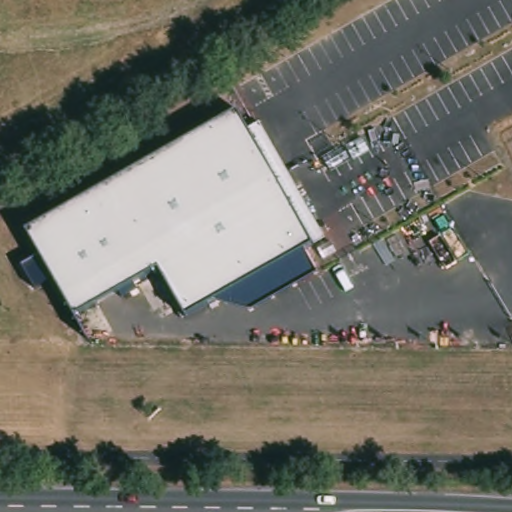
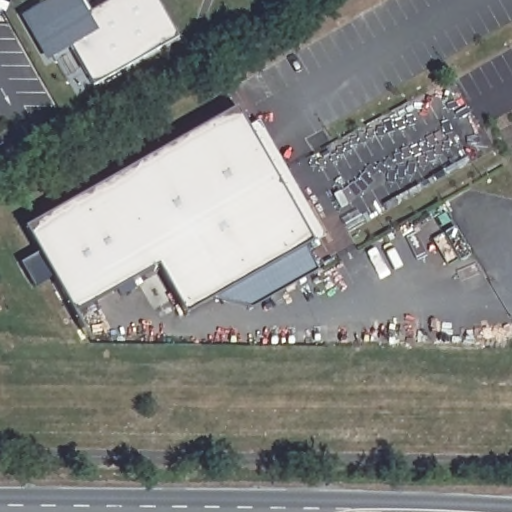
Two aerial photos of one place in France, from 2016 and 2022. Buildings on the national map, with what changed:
new [(43,40),(29,17),(49,6),(45,0),(91,0),(97,12),(118,0),(164,0),(176,23),(185,38),(167,48),(100,86),(76,46),(60,56),(54,60),(43,40)]
unchanged [(186,316),(159,270),(75,317),(25,227),(237,107),(247,126),(261,119),(328,238),(186,316)]

